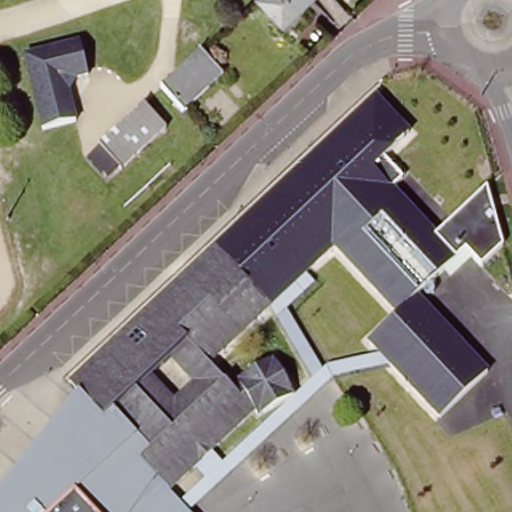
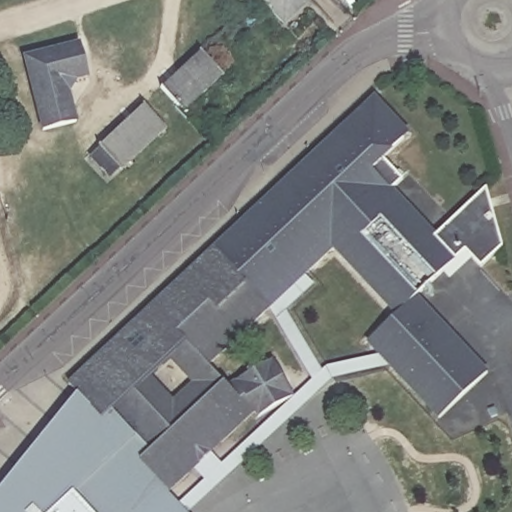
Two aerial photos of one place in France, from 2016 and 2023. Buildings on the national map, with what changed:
unchanged [(286,26),(263,0),(313,0),(286,26)]
unchanged [(82,44),(90,77),(79,80),(70,95),(77,123),(46,132),(27,59),(82,44)]
unchanged [(200,54),(224,79),(185,118),(162,92),(200,54)]
unchanged [(66,381),(215,244),(377,97),(410,132),(394,149),(385,159),(404,179),(395,188),(438,233),(489,186),(505,247),(482,266),(465,249),(419,296),(487,371),(439,417),(390,365),(332,378),(188,512),(0,512),(0,488),(80,392),(66,381)]
unchanged [(86,162),(101,148),(100,145),(143,103),(165,127),(122,170),(120,168),(104,182),(86,162)]

